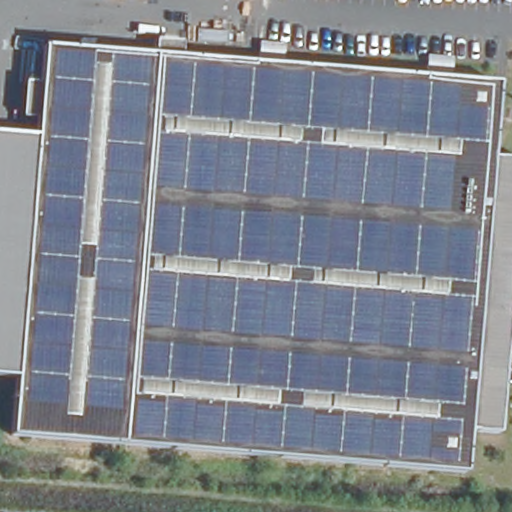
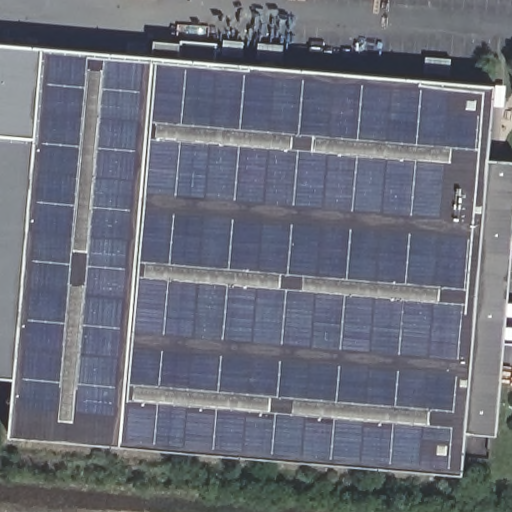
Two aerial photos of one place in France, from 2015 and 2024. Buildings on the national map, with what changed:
unchanged [(501,363),(494,433),(474,431),(470,474),(8,437),(45,38),(506,80),(500,154),(512,156),(512,227),(491,225),(479,361),(501,363)]
new [(44,46),(36,136),(0,133),(0,42),(44,46)]
unchanged [(36,136),(14,376),(0,376),(0,133),(36,136)]

